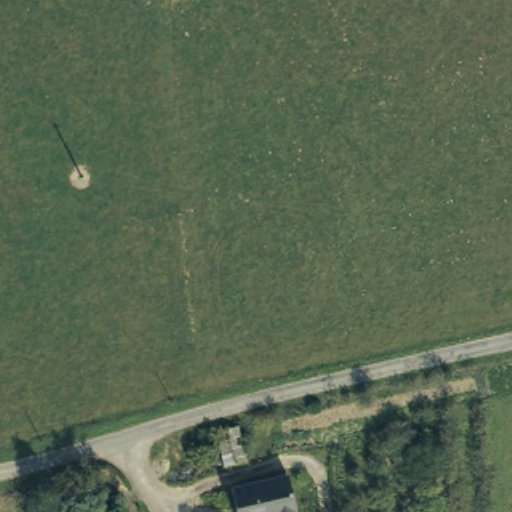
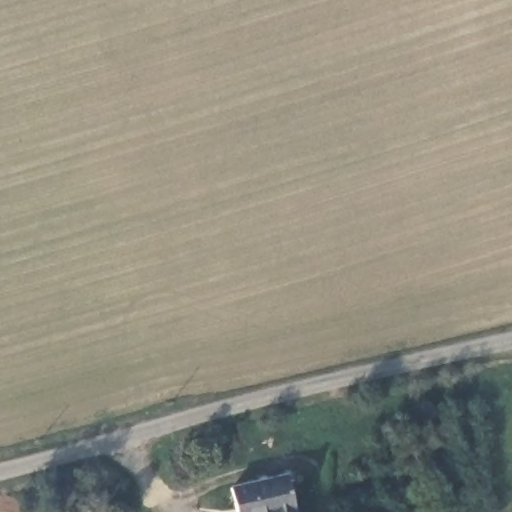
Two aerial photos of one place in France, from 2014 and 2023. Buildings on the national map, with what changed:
unchanged [(242,423),(251,461),(222,468),(213,434),(242,423)]
unchanged [(299,512),(240,512),(235,490),(292,477),(299,512)]

